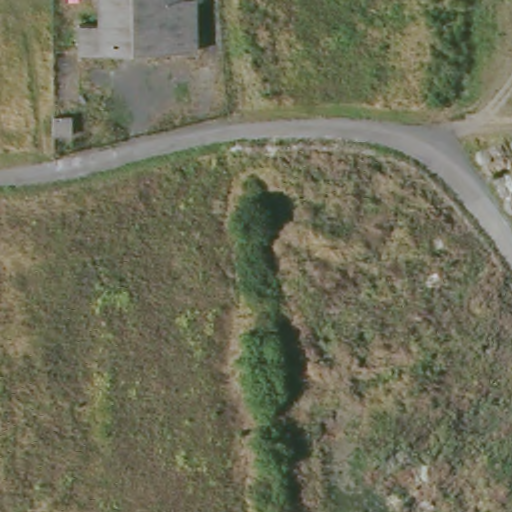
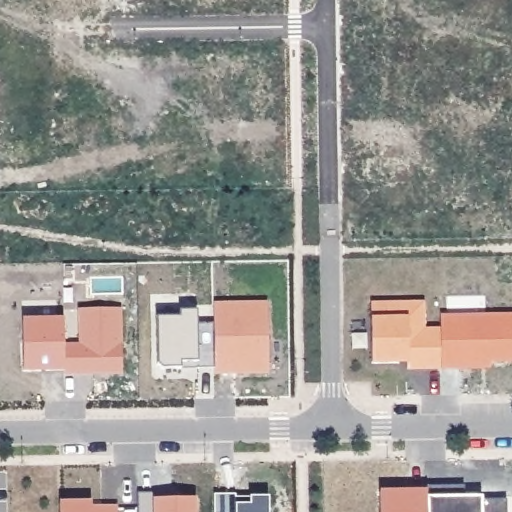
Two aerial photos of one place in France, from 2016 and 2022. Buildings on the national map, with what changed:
demolished [(97,25),(97,0),(162,0),(194,0),(195,50),(79,53),(79,26),(97,25)]
unchanged [(53,117),(71,117),(71,135),(53,135),(53,117)]
new [(426,306),(426,332),(441,332),(442,371),(409,371),(409,365),(374,365),(373,306),(426,306)]
new [(214,310),(270,309),(270,378),(215,378),(214,310)]
new [(26,375),(25,325),(65,325),(65,359),(83,359),(83,314),(124,313),(123,377),(65,378),(65,374),(26,375)]
new [(162,374),(159,369),(160,317),(214,316),(215,373),(162,374)]
new [(512,319),(512,364),(460,364),(460,371),(442,371),(441,320),(512,319)]
new [(460,364),(480,364),(480,371),(460,371),(460,364)]
new [(428,488),(466,487),(466,499),(484,498),(484,502),(508,501),(508,512),(380,512),(380,493),(428,493),(428,488)]
new [(172,499),(195,499),(195,512),(138,512),(138,492),(172,492),(172,499)]
new [(216,512),(216,494),(272,495),(272,512),(216,512)]
new [(92,506),(118,506),(118,512),(59,512),(60,501),(81,501),(92,501),(92,506)]

